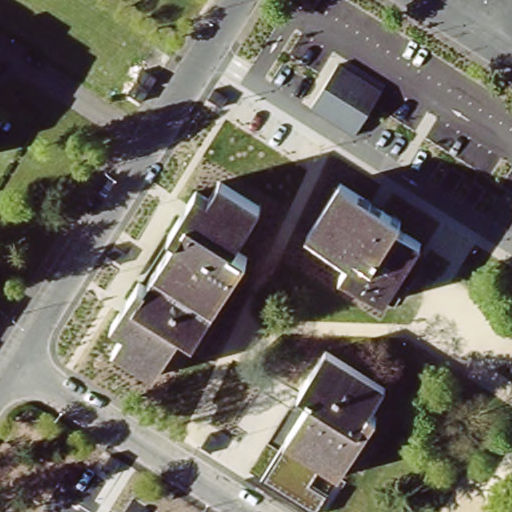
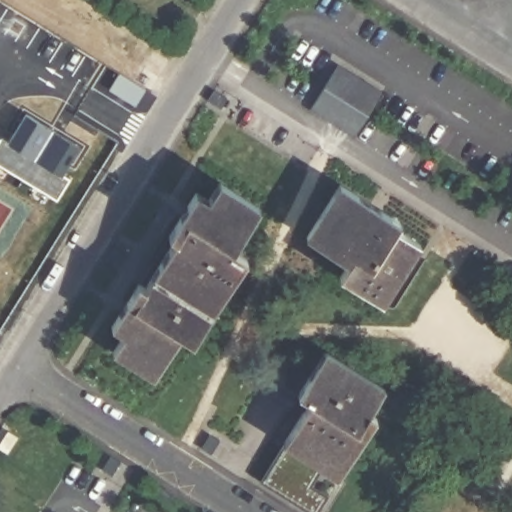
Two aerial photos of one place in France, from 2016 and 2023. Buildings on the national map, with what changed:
new [(121,73),(146,89),(136,106),(111,90),(121,73)]
unchanged [(378,102),(353,147),(308,124),(332,77),(378,102)]
new [(2,137),(10,142),(27,114),(80,147),(63,174),(71,179),(58,200),(0,164),(0,141),(2,137)]
unchanged [(261,212),(235,252),(247,261),(195,344),(181,336),(155,377),(115,352),(125,335),(111,327),(138,285),(144,288),(175,240),(169,236),(195,195),(208,202),(219,185),(261,212)]
unchanged [(385,301),(345,275),(352,262),(312,237),(345,185),(393,216),(403,222),(400,227),(423,243),(421,246),(385,301)]
unchanged [(285,445),(312,402),(301,396),(327,355),(373,385),(320,467),(285,445)]
unchanged [(373,385),(385,392),(370,415),(376,418),(337,478),(320,467),(373,385)]
new [(11,432),(21,438),(11,454),(1,448),(11,432)]

